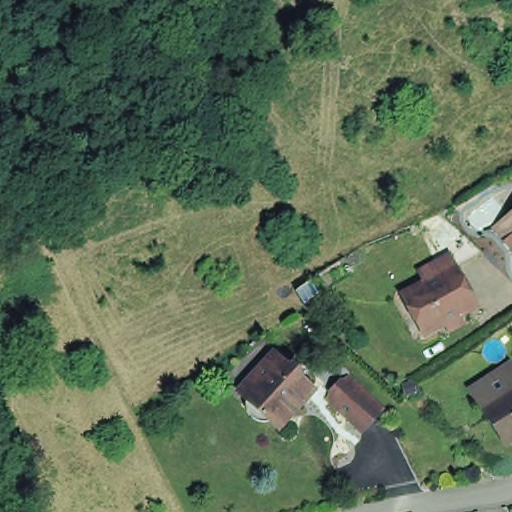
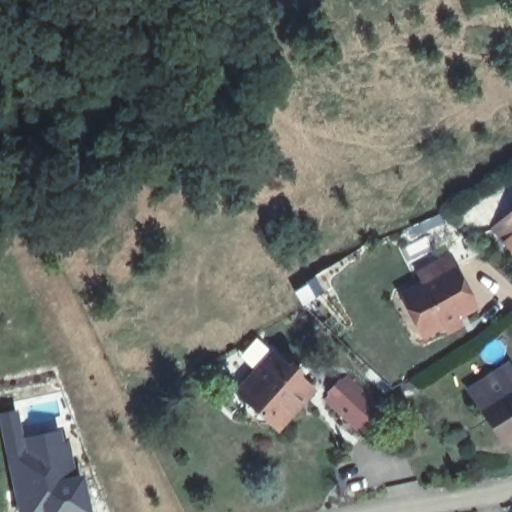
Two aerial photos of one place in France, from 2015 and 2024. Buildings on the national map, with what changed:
unchanged [(500,225),(512,214),(512,239),(511,238),(500,225)]
unchanged [(441,330),(422,340),(402,300),(425,289),(420,279),(450,263),(444,252),(463,241),(482,260),(455,274),(475,313),(458,321),(462,330),(445,337),(441,330)]
unchanged [(270,420),(269,420),(264,422),(257,422),(252,420),(250,417),(246,413),(245,406),(247,401),(247,400),(238,392),(247,382),(275,350),(295,368),(300,361),(311,370),(305,377),(316,387),(287,420),(280,428),(270,420)]
unchanged [(329,396),(348,375),(382,405),(362,426),(329,396)]
unchanged [(512,383),(512,434),(502,440),(481,409),(478,405),(512,383)]
new [(17,412),(23,435),(70,426),(87,512),(16,512),(0,451),(0,415),(17,412)]

